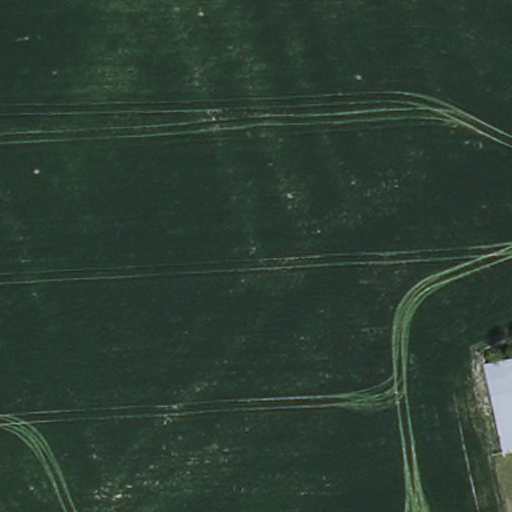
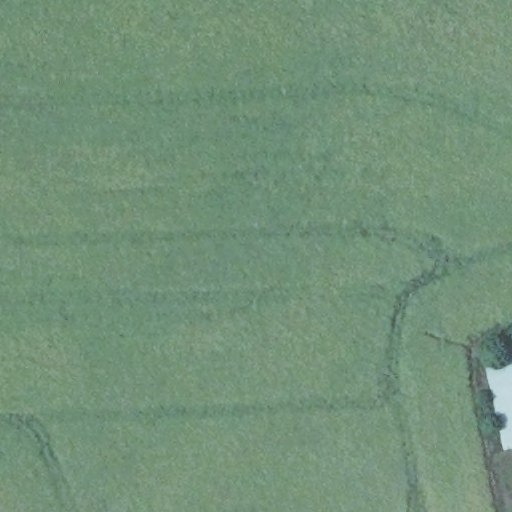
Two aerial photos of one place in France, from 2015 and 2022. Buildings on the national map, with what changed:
unchanged [(512,355),(512,455),(503,457),(481,362),(512,355)]

